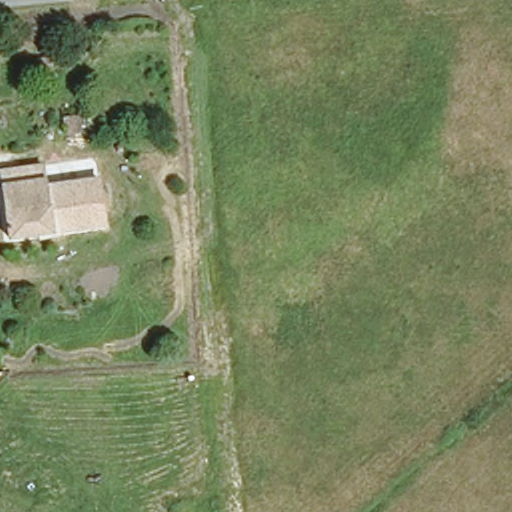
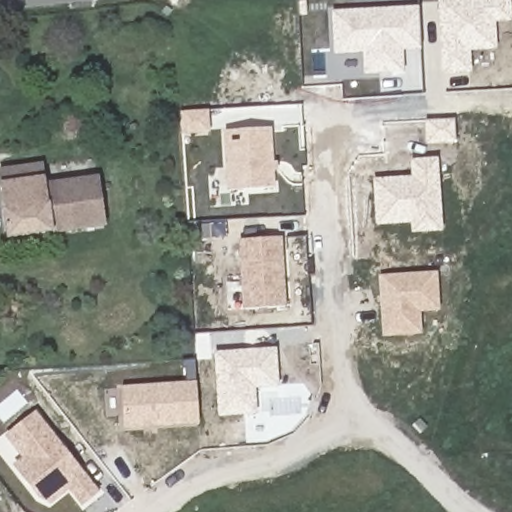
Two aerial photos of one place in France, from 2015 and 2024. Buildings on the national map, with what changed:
new [(438,0),(512,0),(511,19),(495,20),(497,50),(470,51),(471,69),(441,70),(438,0)]
new [(365,53),(334,54),(331,10),(420,7),(421,51),(404,51),(405,72),(366,74),(365,53)]
new [(223,131),(273,129),(276,187),(226,190),(223,131)]
new [(375,225),(372,179),(410,177),(411,160),(439,157),(443,231),(413,234),(413,224),(375,225)]
unchanged [(51,226),(2,232),(0,214),(0,165),(45,160),(45,174),(46,176),(47,184),(51,226)]
unchanged [(47,184),(101,177),(109,222),(51,226),(47,184)]
new [(286,307),(243,310),(239,240),(282,237),(286,307)]
new [(421,333),(382,337),(378,275),(438,271),(440,311),(420,312),(421,333)]
new [(280,387),(256,388),(257,413),(218,418),(215,352),(276,347),(280,387)]
new [(200,425),(124,430),(122,386),(199,381),(200,425)]
new [(81,508),(69,491),(47,508),(12,466),(25,457),(5,434),(36,410),(101,492),(81,508)]

